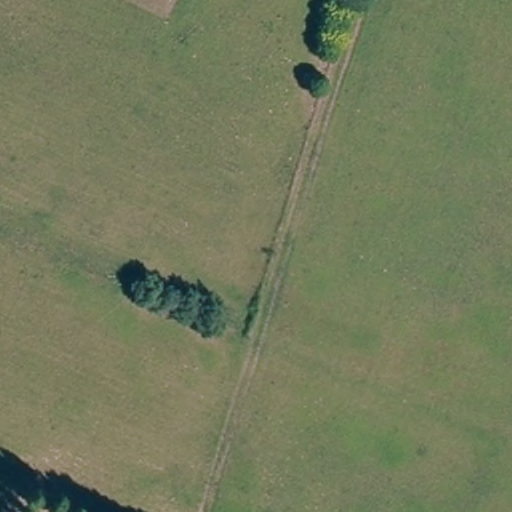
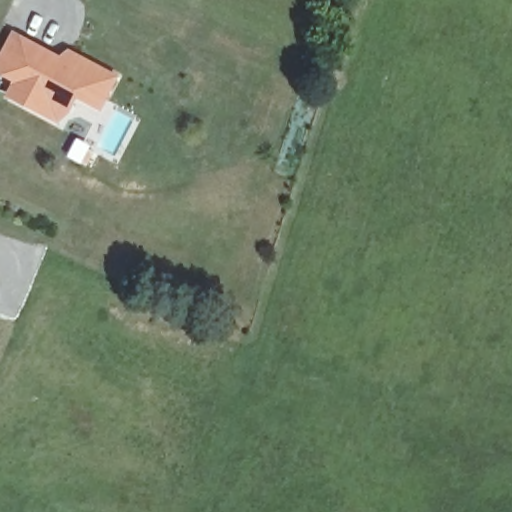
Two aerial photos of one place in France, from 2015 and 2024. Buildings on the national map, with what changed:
new [(14,81),(0,75),(0,55),(14,30),(62,56),(70,49),(121,76),(103,111),(79,101),(72,114),(59,126),(6,96),(14,81)]

